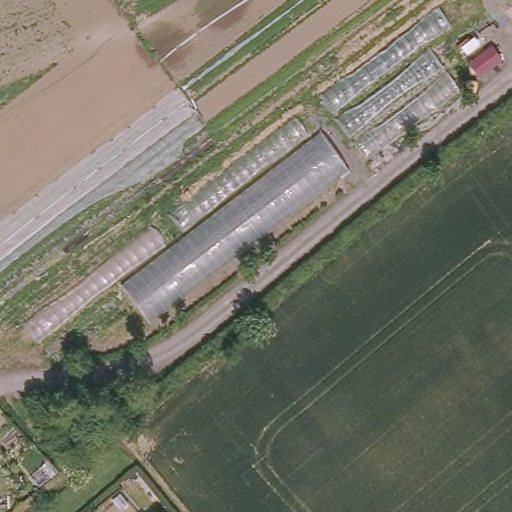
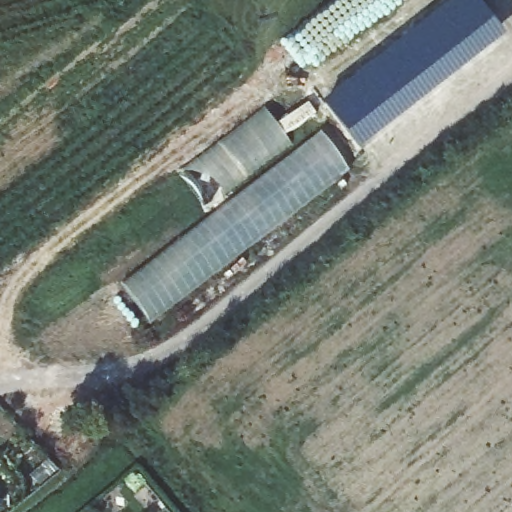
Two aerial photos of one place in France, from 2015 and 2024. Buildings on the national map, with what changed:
new [(458,0),(474,0),(500,34),(491,41),(495,45),(360,151),(324,106),(458,0)]
new [(290,146),(204,213),(175,175),(263,111),(290,146)]
unchanged [(349,172),(150,324),(122,283),(320,132),(349,172)]

